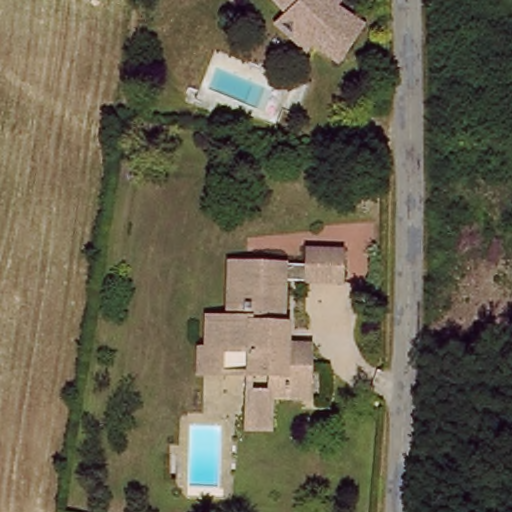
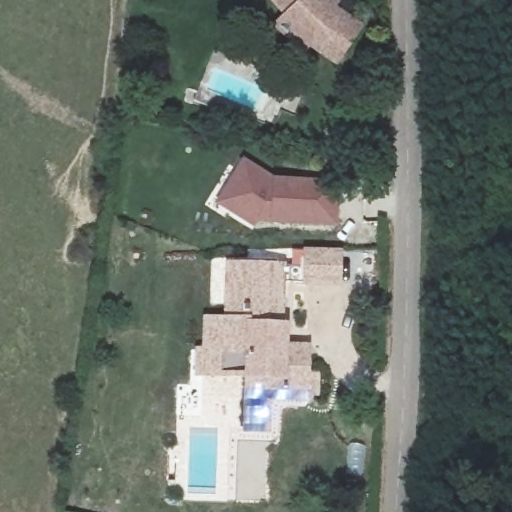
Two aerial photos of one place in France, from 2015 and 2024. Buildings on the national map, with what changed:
unchanged [(286,14),(271,1),(271,0),(326,0),(367,22),(349,59),(319,44),(316,51),(275,30),(286,14)]
new [(242,161),(276,180),(342,180),(341,227),(273,224),(259,222),(256,228),(218,205),(242,161)]
unchanged [(342,254),(342,285),(306,286),(306,269),(305,254),(342,254)]
unchanged [(202,360),(202,356),(210,356),(211,325),(230,325),(230,284),(230,268),(242,268),(306,269),(306,286),(281,286),(281,327),(287,327),(286,348),(311,346),(311,381),(311,393),(271,394),(271,384),(252,384),(224,385),(203,385),(202,360)]
unchanged [(272,436),(251,437),(252,384),(271,384),(271,394),(272,436)]

